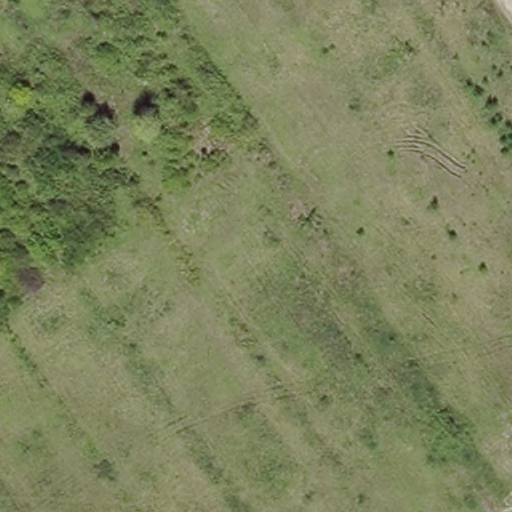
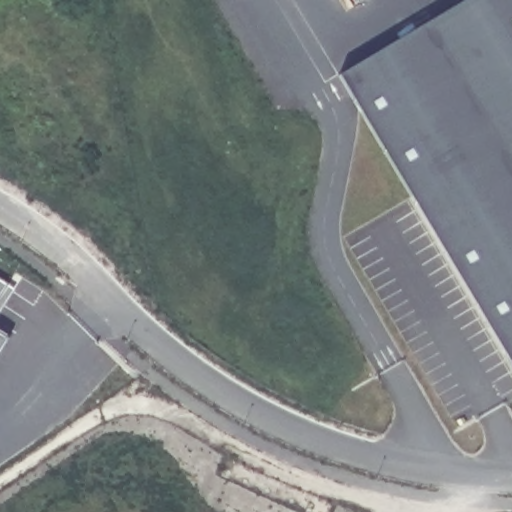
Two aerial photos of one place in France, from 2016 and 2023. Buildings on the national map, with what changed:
new [(342,75),(470,0),(512,0),(512,364),(342,75)]
new [(0,279),(15,290),(0,318),(0,279)]
new [(0,353),(0,333),(9,339),(0,353)]

